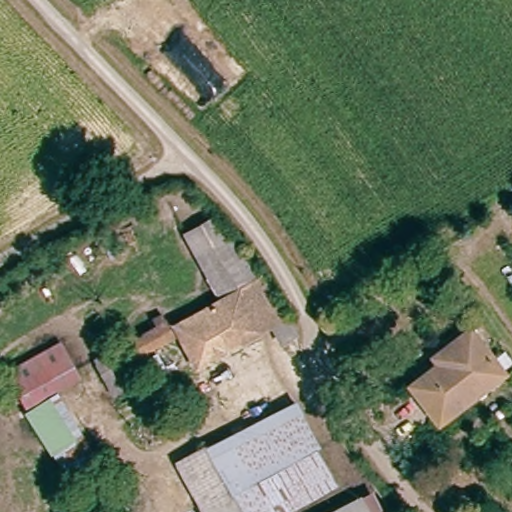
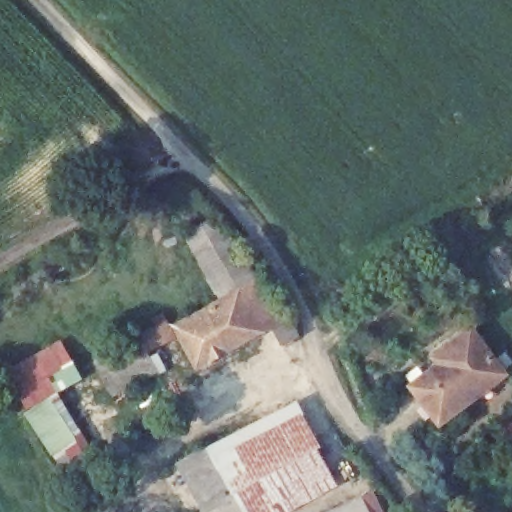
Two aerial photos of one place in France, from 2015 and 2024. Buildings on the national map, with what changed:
unchanged [(218,305),(192,257),(224,240),(252,289),(218,305)]
unchanged [(273,326),(277,324),(288,344),(273,351),(263,332),(193,368),(171,328),(218,305),(252,289),(273,326)]
unchanged [(85,361),(103,352),(116,344),(159,322),(164,332),(167,336),(137,351),(148,371),(136,377),(123,384),(104,395),(85,361)]
unchanged [(463,354),(457,346),(473,334),(495,364),(470,382),(479,394),(442,420),(417,386),(463,354)]
unchanged [(15,367),(68,342),(88,379),(62,394),(102,460),(70,481),(26,412),(15,367)]
unchanged [(228,512),(199,512),(189,494),(176,472),(197,461),(292,409),(305,431),(322,462),(298,474),(243,504),(228,512)]
unchanged [(385,512),(336,512),(362,498),(374,492),(385,512)]
unchanged [(248,512),(228,512),(243,504),(248,512)]

